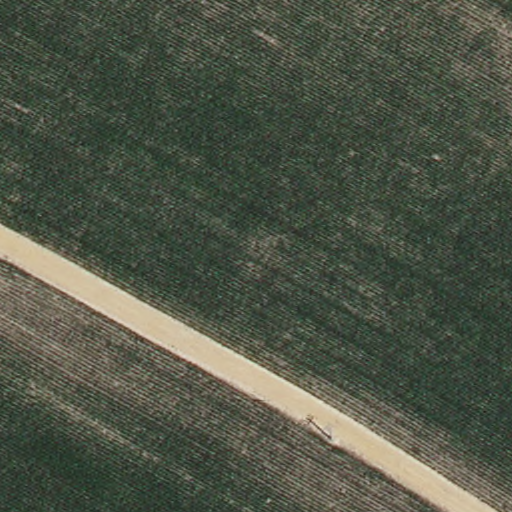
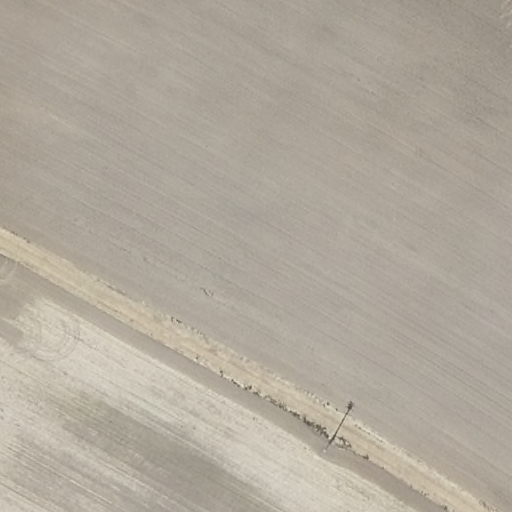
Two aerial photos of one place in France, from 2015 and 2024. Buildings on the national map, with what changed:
[]

